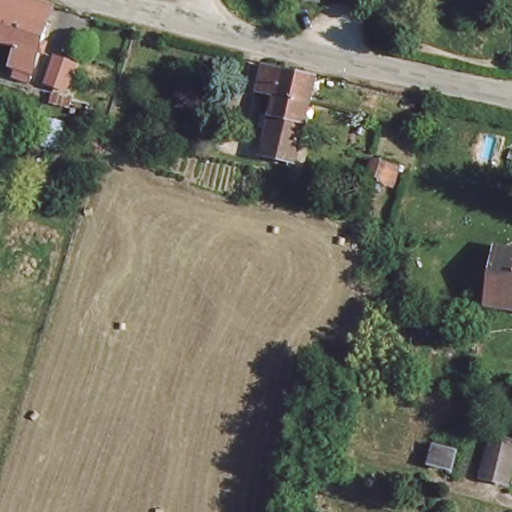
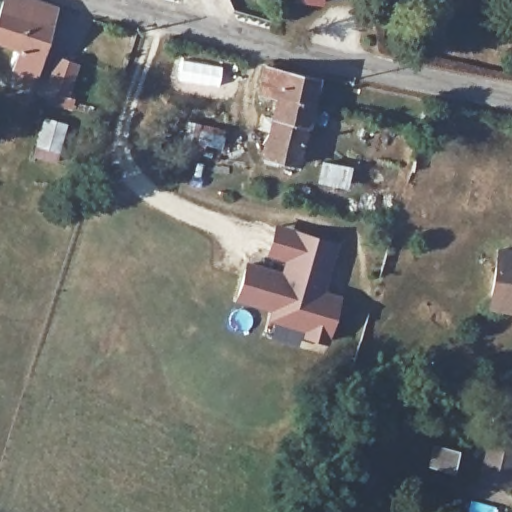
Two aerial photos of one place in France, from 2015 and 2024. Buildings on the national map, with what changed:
unchanged [(56,6),(34,77),(9,69),(17,44),(0,36),(0,17),(6,0),(34,0),(56,6)]
unchanged [(61,49),(85,64),(70,100),(50,84),(61,49)]
unchanged [(318,79),(311,110),(277,101),(260,97),(267,65),(318,79)]
unchanged [(297,168),(264,160),(277,101),(311,110),(297,168)]
unchanged [(71,124),(60,162),(30,152),(43,117),(71,124)]
new [(303,330),(267,321),(270,311),(233,301),(245,260),(281,270),(285,260),(265,255),(274,224),(338,240),(325,290),(340,294),(328,343),(301,337),(303,330)]
unchanged [(512,307),(493,301),(506,247),(512,249),(512,307)]
unchanged [(512,488),(486,480),(495,443),(512,448),(512,488)]

